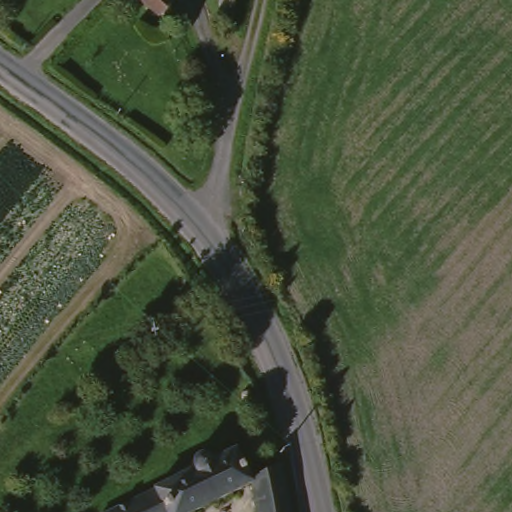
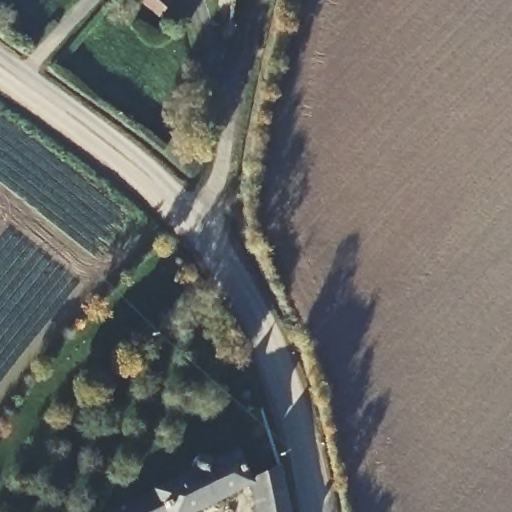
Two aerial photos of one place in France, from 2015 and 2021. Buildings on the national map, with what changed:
unchanged [(182,10),(171,22),(150,0),(173,0),(182,10)]
unchanged [(201,457),(203,453),(205,450),(209,449),(213,449),(217,450),(221,458),(242,450),(259,476),(257,478),(254,480),(251,483),(199,512),(105,512),(104,512),(203,466),(201,457)]
unchanged [(287,463),(298,512),(260,512),(251,483),(254,480),(257,478),(259,476),(284,464),(287,463)]

